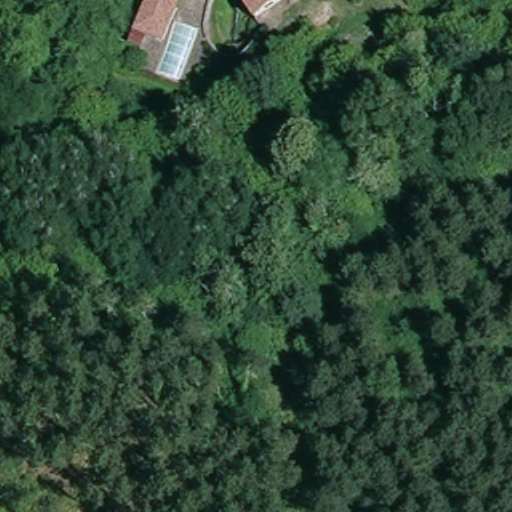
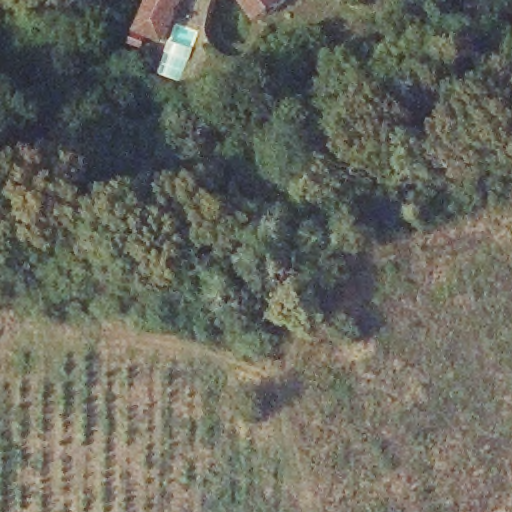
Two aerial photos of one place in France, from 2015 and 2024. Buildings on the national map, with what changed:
unchanged [(135,27),(147,0),(179,0),(161,40),(135,27)]
unchanged [(259,21),(254,14),(247,6),(243,0),(287,0),(285,2),(259,21)]

